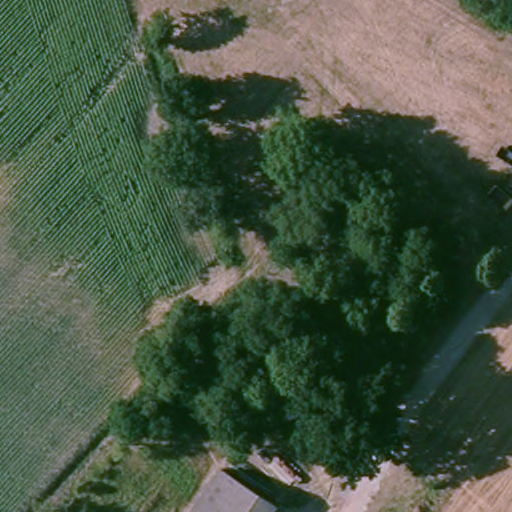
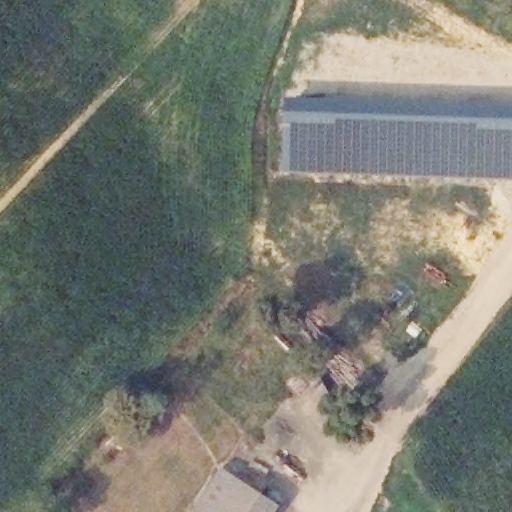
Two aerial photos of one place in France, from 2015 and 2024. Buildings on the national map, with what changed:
new [(285,96),(512,104),(512,179),(282,171),(285,96)]
unchanged [(338,394),(347,384),(359,397),(348,407),(338,394)]
unchanged [(239,466),(287,505),(281,512),(214,512),(207,506),(239,466)]
unchanged [(214,512),(202,512),(207,506),(214,512)]

